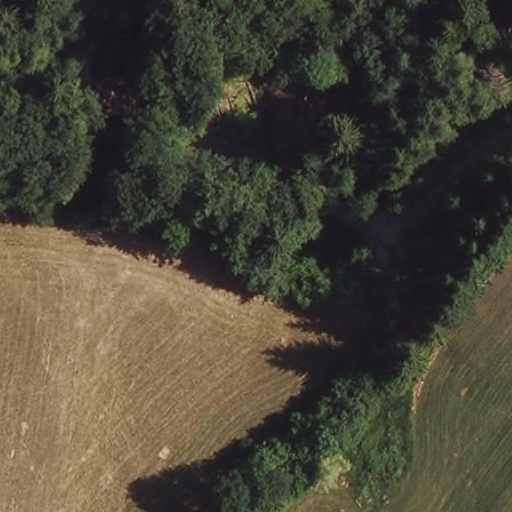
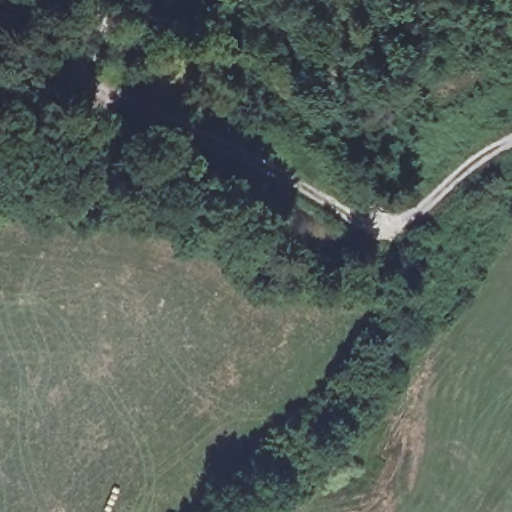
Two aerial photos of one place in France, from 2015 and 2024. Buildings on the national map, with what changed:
[]

